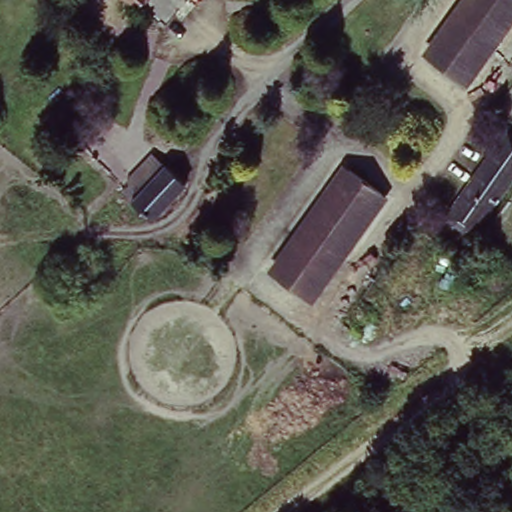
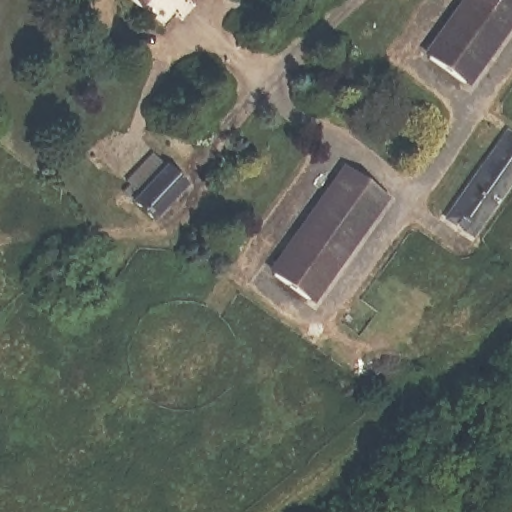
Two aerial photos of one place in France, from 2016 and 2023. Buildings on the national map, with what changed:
unchanged [(132,0),(141,0),(137,4),(132,0)]
unchanged [(512,0),(512,21),(465,86),(422,56),(462,0),(512,0)]
unchanged [(512,126),(512,175),(470,236),(442,218),(508,123),(512,126)]
unchanged [(131,189),(152,163),(161,170),(170,160),(191,178),(162,213),(140,196),(131,189)]
unchanged [(339,164),(383,195),(309,299),(265,269),(339,164)]

